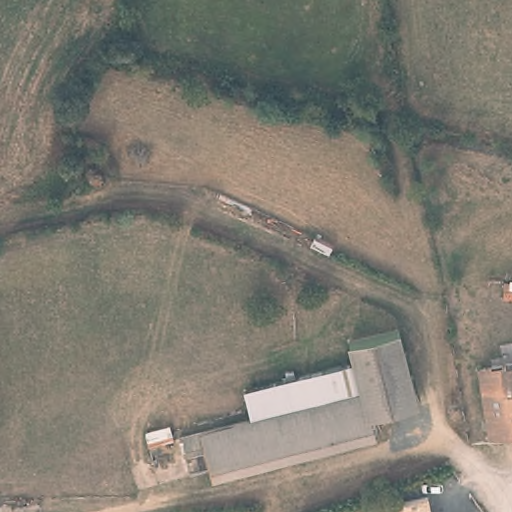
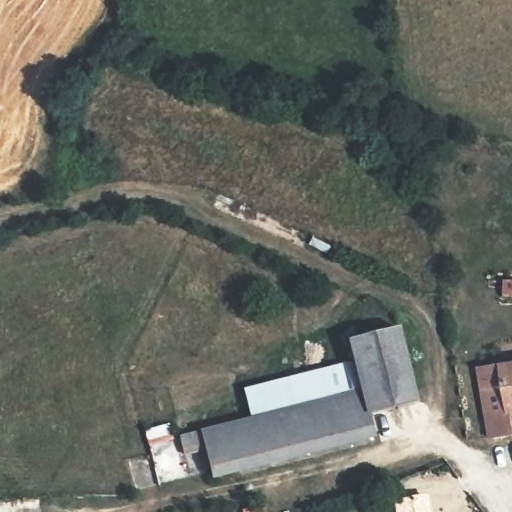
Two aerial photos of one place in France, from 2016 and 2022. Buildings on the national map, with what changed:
unchanged [(512,287),(512,296),(511,296),(512,287)]
unchanged [(399,328),(418,398),(371,412),(356,361),(351,340),(399,328)]
unchanged [(323,393),(318,371),(356,361),(371,412),(376,436),(304,456),(291,400),(323,393)]
unchanged [(478,370),(512,365),(512,434),(489,436),(478,370)]
unchanged [(323,393),(291,400),(304,456),(216,480),(204,430),(255,417),(249,390),(318,371),(323,393)]
unchanged [(425,492),(430,512),(398,512),(395,499),(425,492)]

